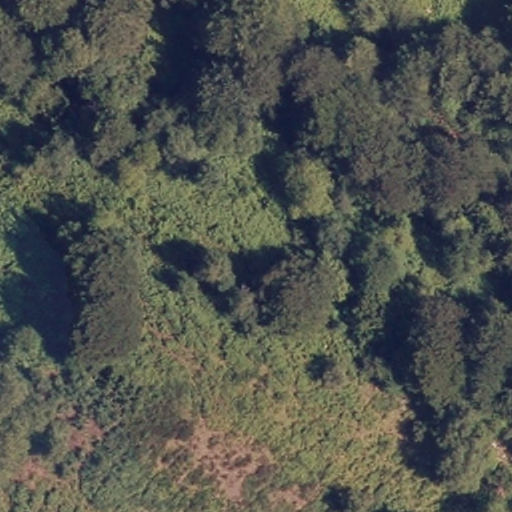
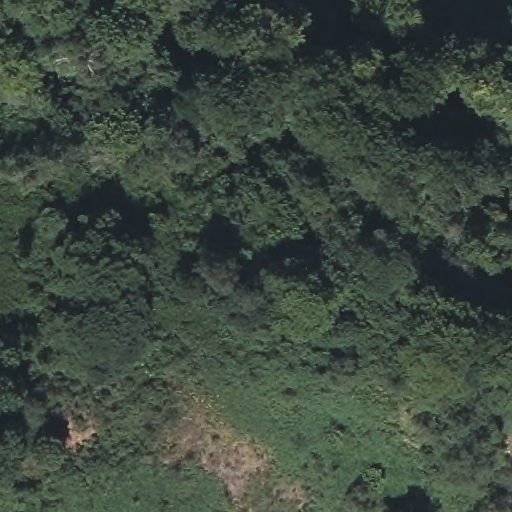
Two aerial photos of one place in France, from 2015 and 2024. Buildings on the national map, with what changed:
unchanged [(19,468),(0,464),(0,407),(20,409),(19,468)]

